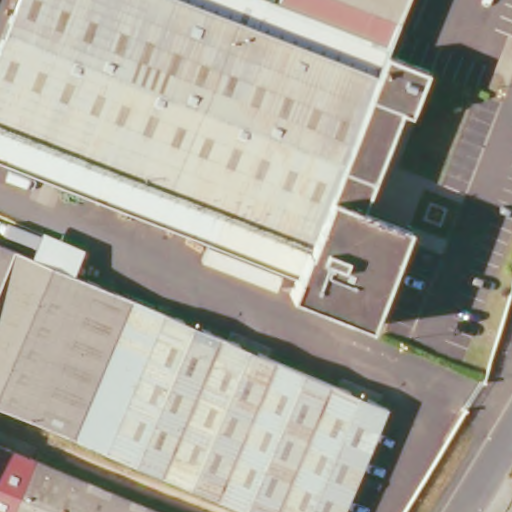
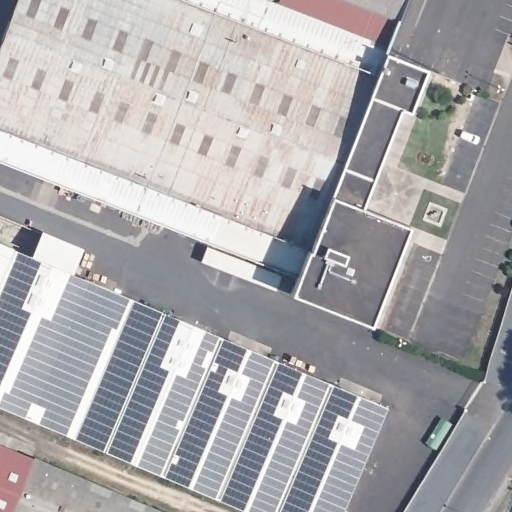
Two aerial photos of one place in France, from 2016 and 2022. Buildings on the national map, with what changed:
unchanged [(427,73),(411,118),(399,113),(358,209),(408,230),(369,329),(291,300),(301,272),(0,160),(0,48),(18,0),(265,0),(276,5),(278,0),(408,0),(386,55),(427,73)]
unchanged [(0,273),(0,247),(9,251),(0,273)]
unchanged [(0,411),(0,273),(9,251),(114,297),(54,434),(0,411)]
unchanged [(54,434),(114,297),(379,412),(337,512),(238,512),(54,434)]
unchanged [(153,512),(0,512),(0,447),(31,462),(153,512)]

